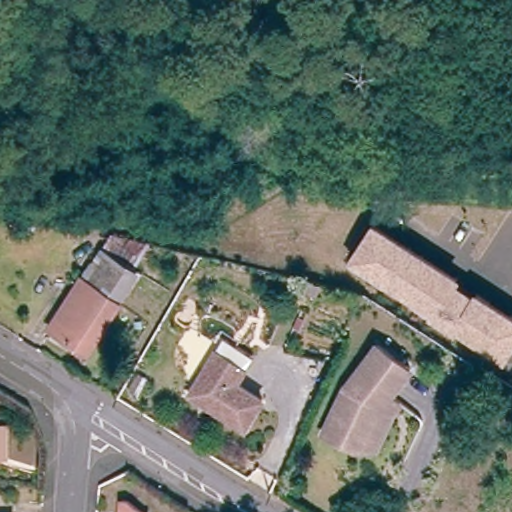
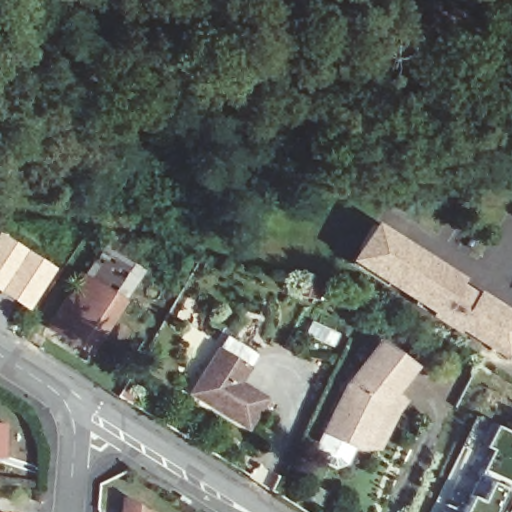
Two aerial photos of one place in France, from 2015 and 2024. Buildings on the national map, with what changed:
unchanged [(460,281),(472,290),(475,286),(512,311),(512,350),(506,359),(348,258),(371,220),(462,275),(460,281)]
new [(51,266),(22,309),(0,294),(0,234),(51,266)]
unchanged [(82,361),(48,339),(95,260),(107,242),(142,251),(126,278),(130,281),(82,361)]
unchanged [(257,394),(239,422),(184,388),(212,344),(220,332),(248,350),(241,363),(231,377),(257,394)]
unchanged [(386,407),(371,437),(348,445),(331,437),(314,430),(337,383),(369,339),(403,364),(383,390),(392,398),(386,407)]
new [(452,475),(459,460),(464,463),(457,483),(465,488),(486,448),(480,445),(492,422),(507,429),(512,421),(512,512),(429,512),(434,502),(448,473),(452,475)]
unchanged [(8,423),(7,459),(0,459),(0,423),(8,423)]
unchanged [(117,507),(146,509),(146,512),(117,512),(117,507)]

